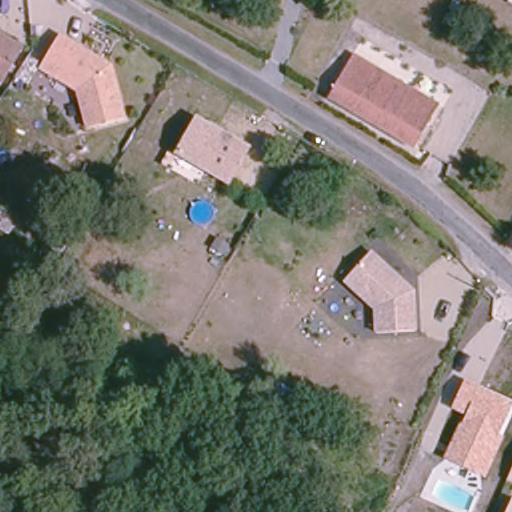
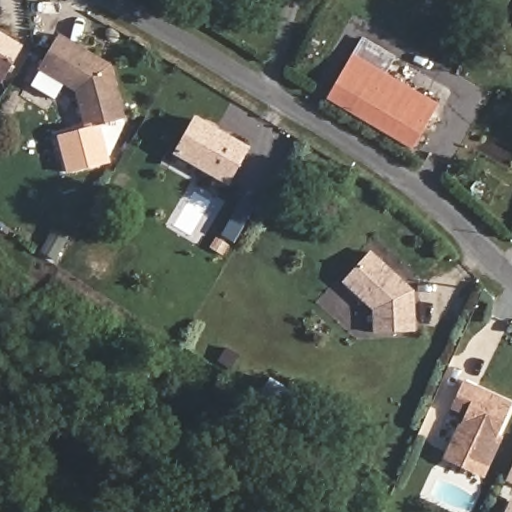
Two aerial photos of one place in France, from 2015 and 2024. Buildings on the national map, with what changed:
unchanged [(22,47),(4,81),(0,79),(0,35),(22,47)]
unchanged [(123,121),(86,130),(77,92),(40,69),(59,37),(96,59),(104,64),(110,67),(123,121)]
unchanged [(423,95),(415,120),(427,129),(421,140),(333,95),(354,59),(423,95)]
unchanged [(225,181),(174,154),(192,120),(243,148),(225,181)]
new [(86,130),(100,126),(110,162),(67,174),(56,135),(86,127),(86,130)]
unchanged [(376,308),(344,281),(370,252),(414,292),(415,332),(408,332),(377,333),(376,314),(376,308)]
unchanged [(504,437),(485,477),(444,458),(461,423),(465,415),(451,409),(464,380),(512,402),(512,406),(498,434),(504,437)]
unchanged [(512,467),(512,482),(506,479),(512,467)]
unchanged [(512,498),(512,512),(505,512),(511,497),(512,498)]

